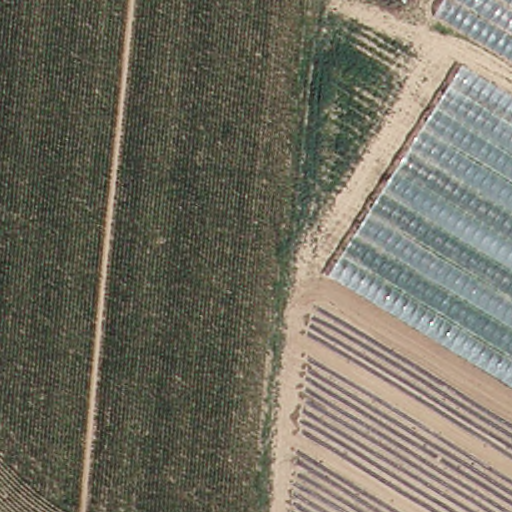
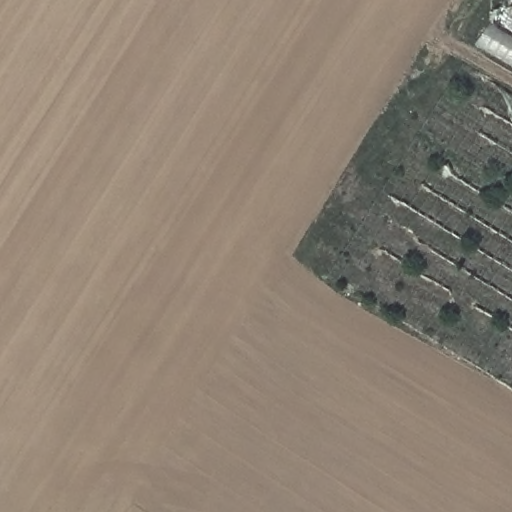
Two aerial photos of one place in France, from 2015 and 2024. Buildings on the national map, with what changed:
new [(496,0),(512,0),(512,61),(472,37),(496,0)]
new [(461,65),(512,95),(512,384),(331,272),(461,65)]

